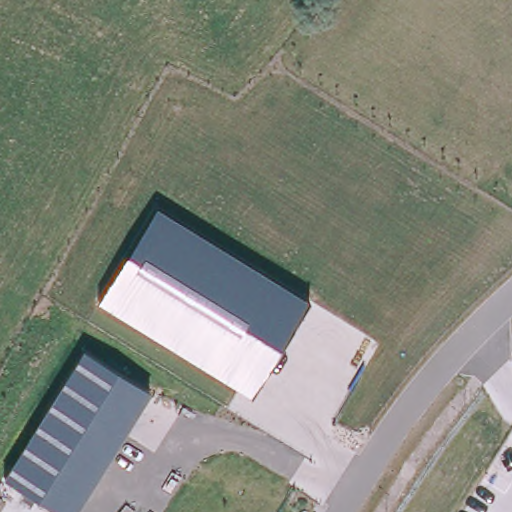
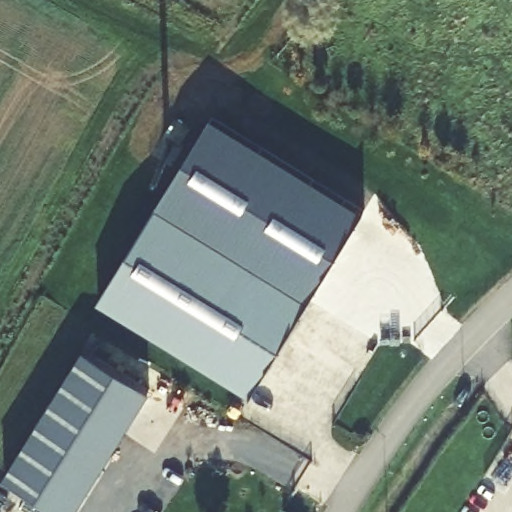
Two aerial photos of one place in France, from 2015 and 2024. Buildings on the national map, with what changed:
new [(212,116),(364,209),(310,299),(157,206),(212,116)]
unchanged [(310,299),(251,394),(98,299),(157,206),(310,299)]
unchanged [(82,349),(151,391),(75,512),(58,512),(2,478),(82,349)]

